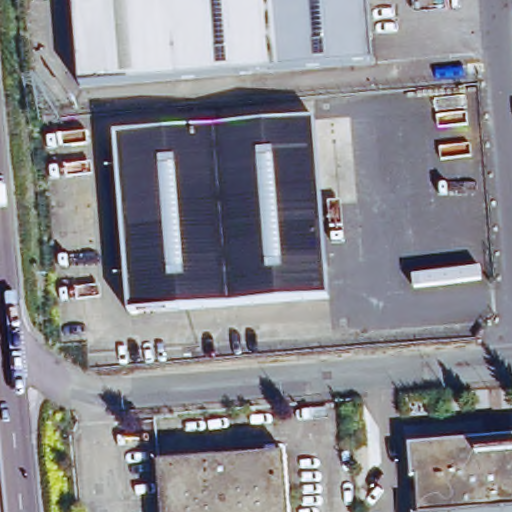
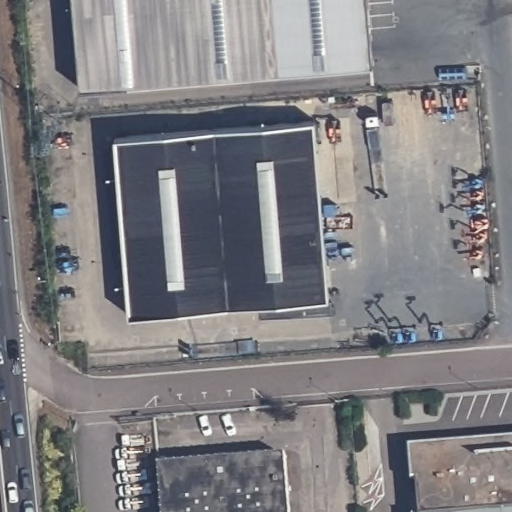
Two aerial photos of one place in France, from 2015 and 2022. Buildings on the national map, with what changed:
unchanged [(73,0),(364,0),(371,67),(81,91),(73,0)]
unchanged [(115,138),(311,120),(326,296),(128,311),(115,138)]
unchanged [(512,441),(512,512),(414,512),(410,449),(512,441)]
unchanged [(284,444),(290,512),(157,512),(152,456),(284,444)]

